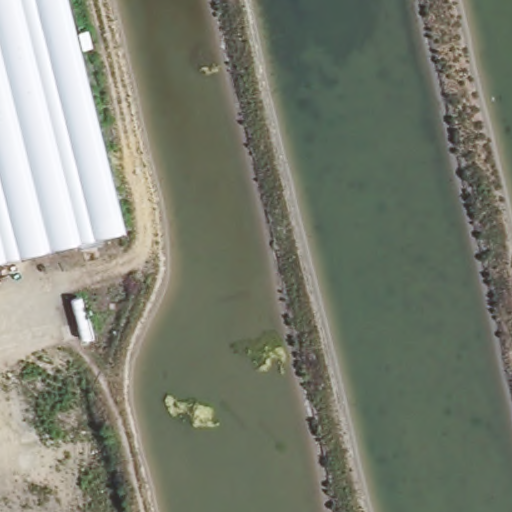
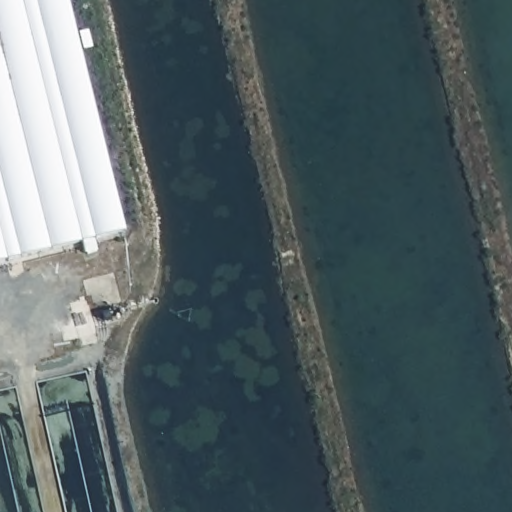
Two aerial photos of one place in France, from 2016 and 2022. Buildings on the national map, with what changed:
unchanged [(73,245),(0,265),(0,0),(13,0),(30,73),(73,245)]
unchanged [(73,245),(30,73),(13,0),(68,0),(123,231),(73,245)]
unchanged [(123,231),(68,0),(131,229),(123,231)]

